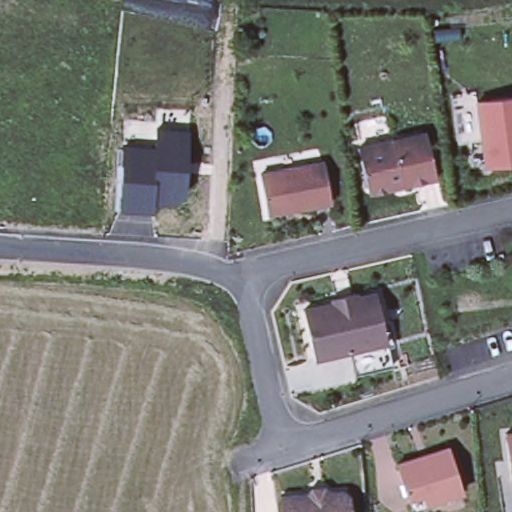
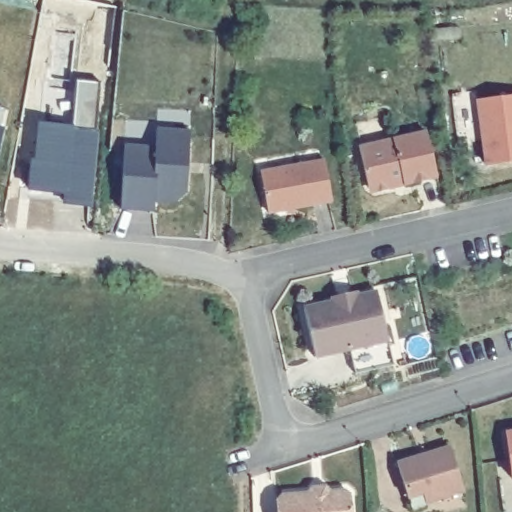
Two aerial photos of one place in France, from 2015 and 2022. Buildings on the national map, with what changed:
unchanged [(512,161),(485,164),(477,100),(512,95),(512,161)]
new [(99,129),(92,206),(65,202),(65,194),(30,189),(32,160),(36,160),(37,124),(99,129)]
new [(7,127),(0,155),(0,126),(7,127)]
unchanged [(122,145),(155,148),(157,128),(189,131),(186,194),(175,204),(153,203),(152,213),(117,211),(122,145)]
unchanged [(427,131),(435,176),(403,183),(402,177),(393,179),(387,187),(373,189),(367,184),(359,145),(427,131)]
unchanged [(260,170),(323,159),(330,199),(267,211),(260,170)]
unchanged [(357,371),(351,347),(316,354),(306,305),(379,290),(390,338),(395,363),(357,371)]
unchanged [(512,432),(512,470),(507,432),(512,432)]
unchanged [(452,446),(464,491),(412,506),(398,462),(452,446)]
unchanged [(283,494),(310,492),(315,497),(328,496),(333,491),(347,490),(353,495),(354,512),(279,512),(278,499),(283,494)]

